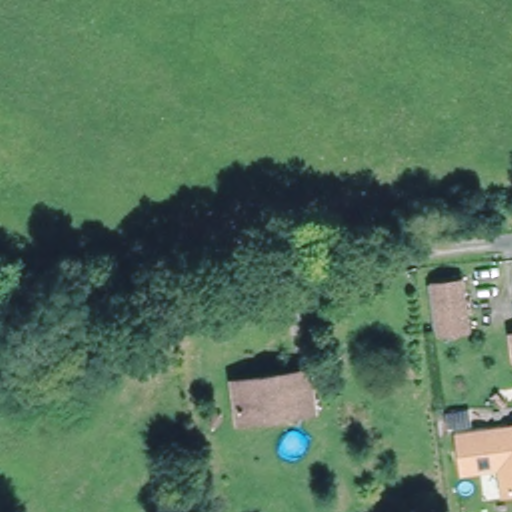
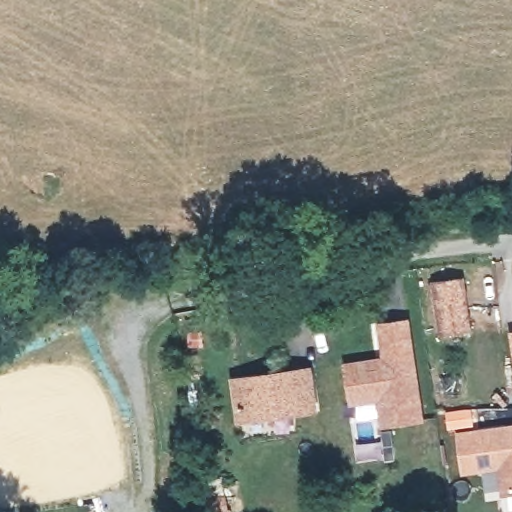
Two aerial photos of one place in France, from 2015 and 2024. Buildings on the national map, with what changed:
unchanged [(468,328),(440,332),(434,282),(462,279),(468,328)]
new [(377,322),(410,317),(427,423),(382,429),(377,403),(349,406),(343,361),(382,356),(377,322)]
unchanged [(310,370),(314,409),(242,417),(237,378),(310,370)]
unchanged [(498,457),(461,462),(457,425),(512,418),(512,483),(502,484),(498,457)]

